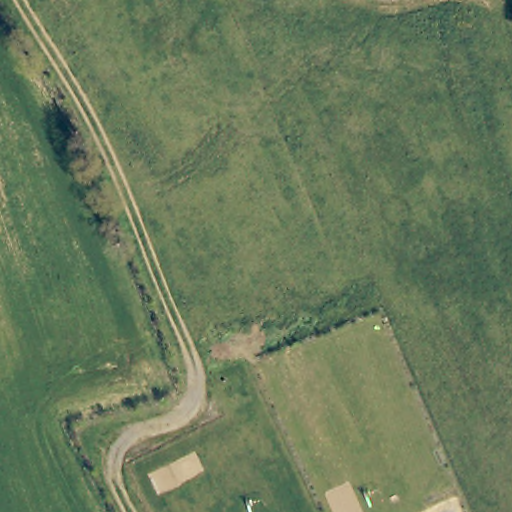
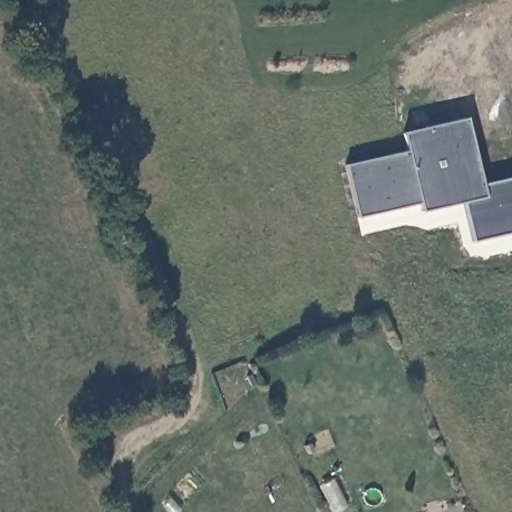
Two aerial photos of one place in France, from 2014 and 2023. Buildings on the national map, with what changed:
new [(406,149),(402,131),(465,117),(483,194),(419,210),(417,202),(354,215),(343,163),(406,149)]

